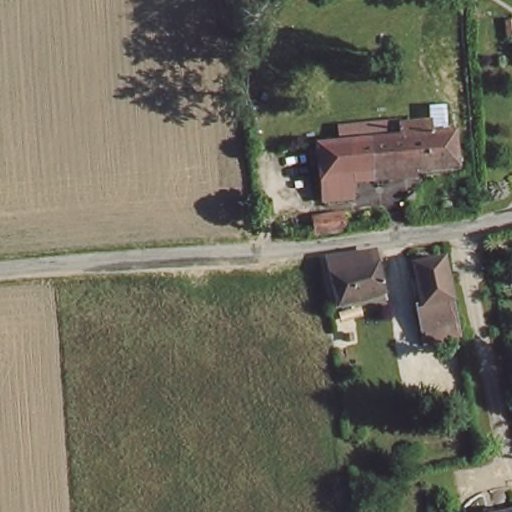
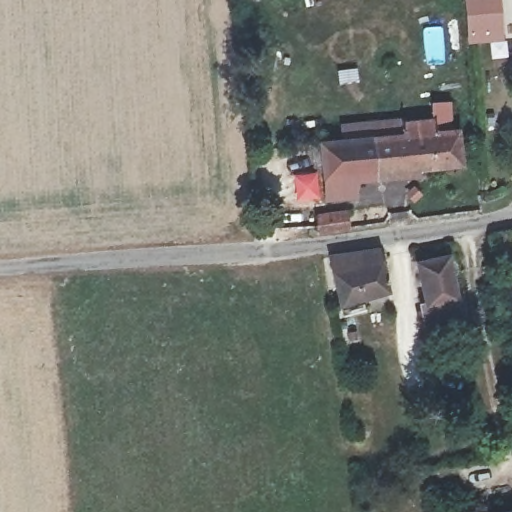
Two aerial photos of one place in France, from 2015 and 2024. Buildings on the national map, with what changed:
new [(509,57),(490,60),(488,42),(467,45),(463,0),(502,0),(509,57)]
unchanged [(358,168),(358,186),(333,187),(329,160),(315,159),(316,139),(462,125),(464,155),(358,168)]
unchanged [(332,223),(328,195),(333,195),(339,195),(339,202),(350,203),(352,222),(332,223)]
unchanged [(365,257),(379,255),(383,291),(338,296),(335,259),(365,257)]
unchanged [(414,305),(423,304),(420,262),(452,260),(457,321),(416,326),(414,305)]
unchanged [(482,512),(512,508),(512,512),(482,512)]

